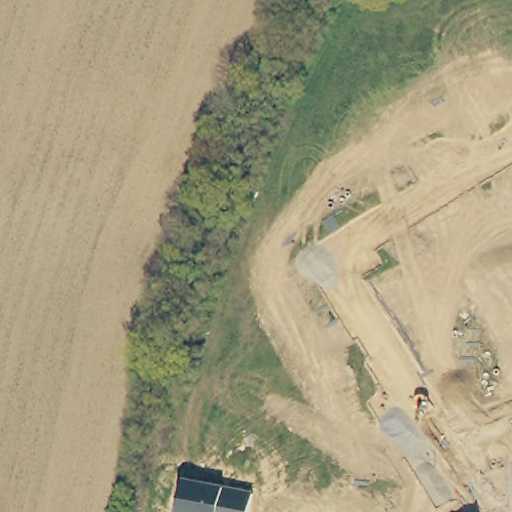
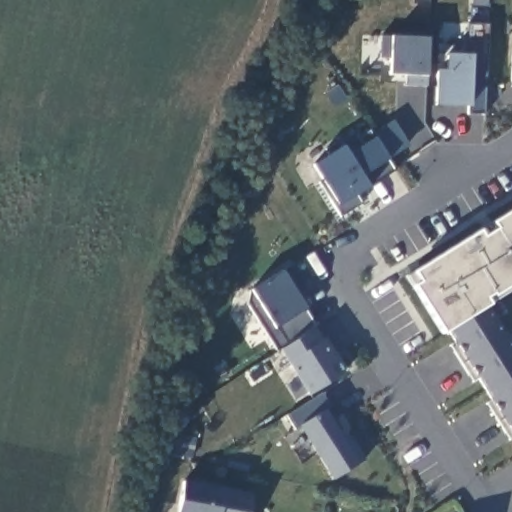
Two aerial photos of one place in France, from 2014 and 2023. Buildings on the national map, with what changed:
new [(485,114),(470,113),(470,109),(436,106),(437,70),(446,70),(447,54),(472,55),(469,24),(490,24),(485,114)]
new [(405,86),(406,77),(388,76),(391,35),(429,37),(427,74),(428,86),(405,86)]
new [(360,194),(366,201),(345,215),(339,205),(314,165),(328,156),(324,150),(355,130),(360,137),(372,130),(378,139),(390,160),(397,171),(360,194)]
new [(490,305),(449,331),(443,331),(414,286),(420,282),(412,272),(479,230),(484,236),(495,229),(492,222),(512,209),(512,283),(486,300),(490,305)]
new [(283,351),(278,353),(248,305),(252,290),(290,266),(303,286),(296,290),(318,327),(283,351)]
new [(492,410),(498,406),(476,373),(469,377),(453,352),(460,348),(449,331),(490,305),(512,342),(512,431),(507,435),(492,410)]
unchanged [(345,371),(310,394),(283,351),(318,327),(345,371)]
new [(331,406),(327,410),(344,435),(352,436),(366,458),(333,481),(299,427),(296,430),(288,415),(324,392),(331,406)]
unchanged [(181,480),(224,487),(254,492),(250,512),(176,512),(181,480)]

